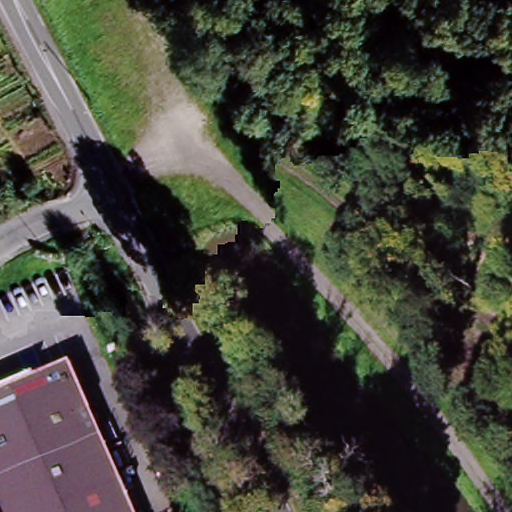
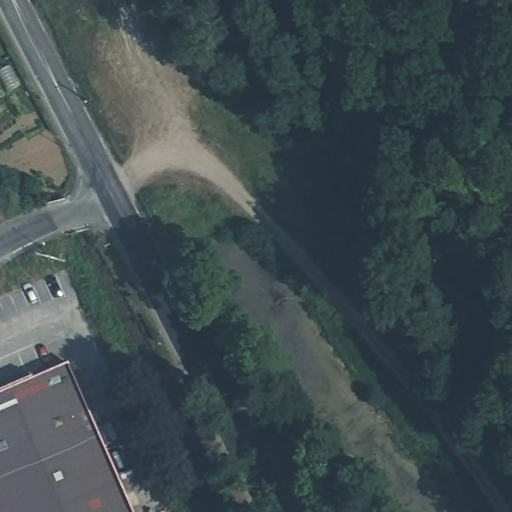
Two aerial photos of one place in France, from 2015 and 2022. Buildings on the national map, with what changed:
unchanged [(63,365),(127,512),(0,512),(0,392),(63,365)]

